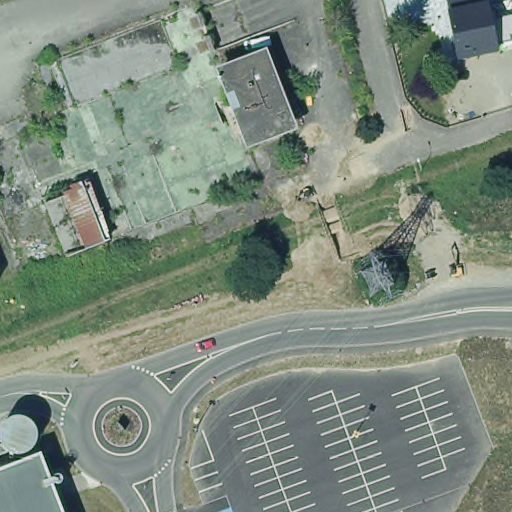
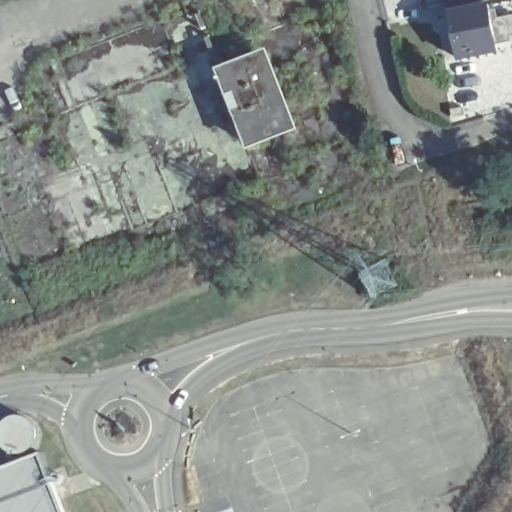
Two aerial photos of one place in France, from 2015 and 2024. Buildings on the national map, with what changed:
unchanged [(500,16),(502,28),(495,30),(498,46),(459,55),(450,9),(449,0),(475,0),(475,4),(489,1),(492,16),(500,16)]
unchanged [(264,51),(290,121),(247,138),(219,69),(264,51)]
demolished [(112,237),(67,254),(45,197),(90,178),(112,237)]
new [(0,452),(0,441),(4,440),(5,444),(10,448),(0,452)]
unchanged [(0,468),(38,454),(61,512),(0,512),(0,468)]

